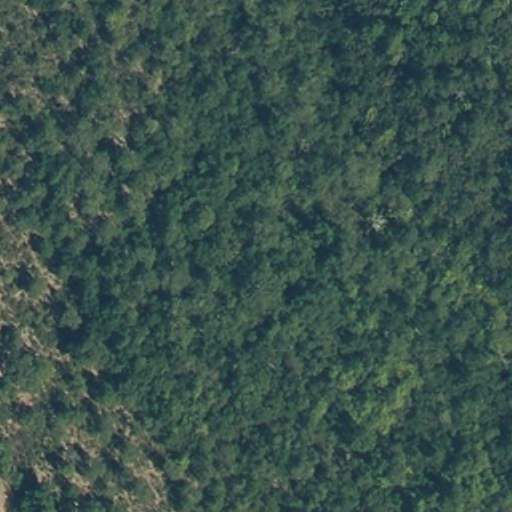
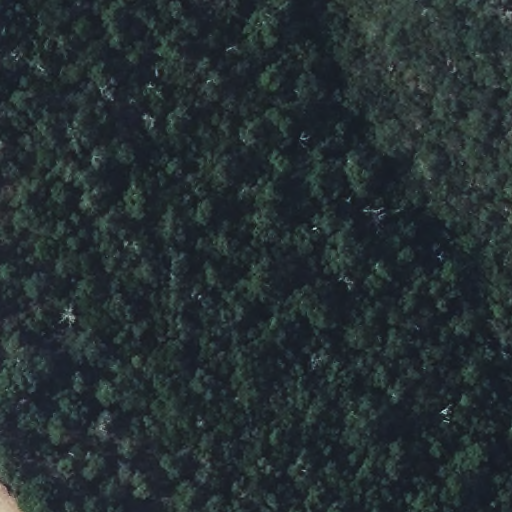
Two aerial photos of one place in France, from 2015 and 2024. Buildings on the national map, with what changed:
[]

